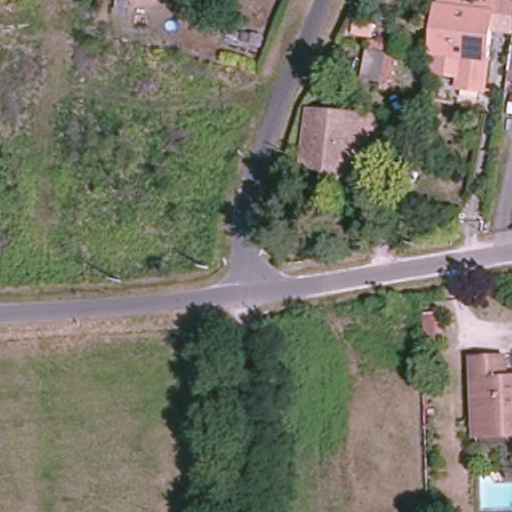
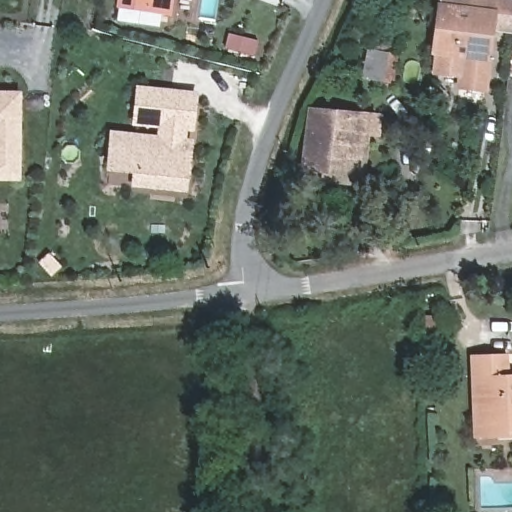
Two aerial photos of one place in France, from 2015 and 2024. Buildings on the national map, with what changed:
new [(115,8),(116,0),(173,0),(171,16),(115,8)]
unchanged [(492,60),(488,95),(457,90),(458,79),(432,75),(435,57),(428,57),(438,0),(497,0),(488,60),(492,60)]
unchanged [(397,42),(395,52),(402,54),(397,88),(363,82),(372,39),(397,42)]
new [(157,135),(157,128),(133,125),(137,85),(197,92),(194,131),(187,131),(187,139),(192,139),(189,179),(188,192),(131,187),(132,173),(106,170),(110,130),(157,135)]
new [(21,181),(0,181),(0,91),(22,91),(21,181)]
unchanged [(307,173),(312,115),(371,119),(384,120),(382,139),(370,138),(367,177),(307,173)]
unchanged [(478,420),(476,356),(508,355),(510,375),(512,375),(512,432),(478,433),(478,420)]

